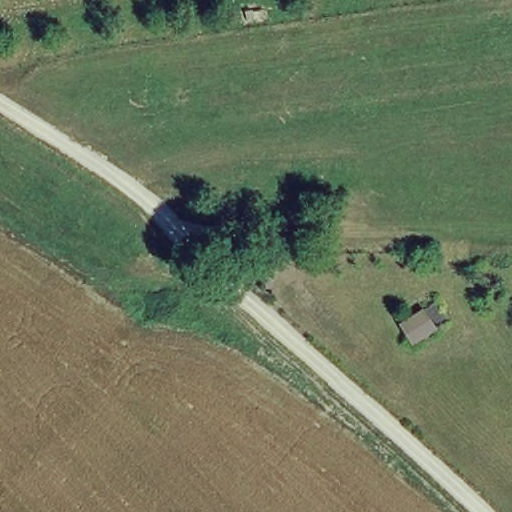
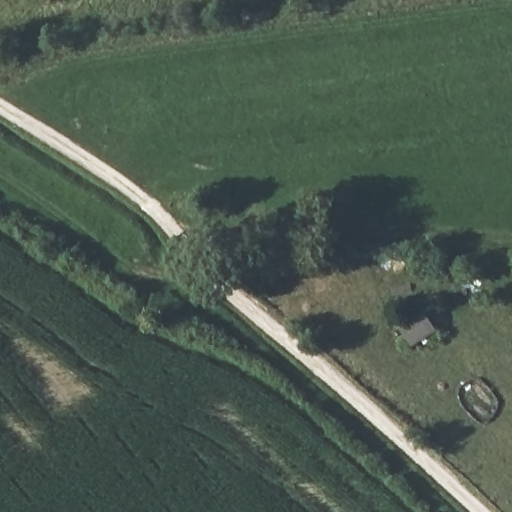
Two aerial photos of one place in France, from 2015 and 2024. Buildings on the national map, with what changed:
unchanged [(412,346),(398,323),(425,308),(437,331),(412,346)]

